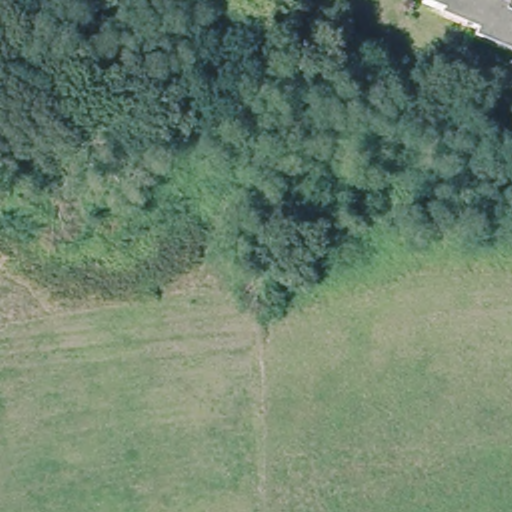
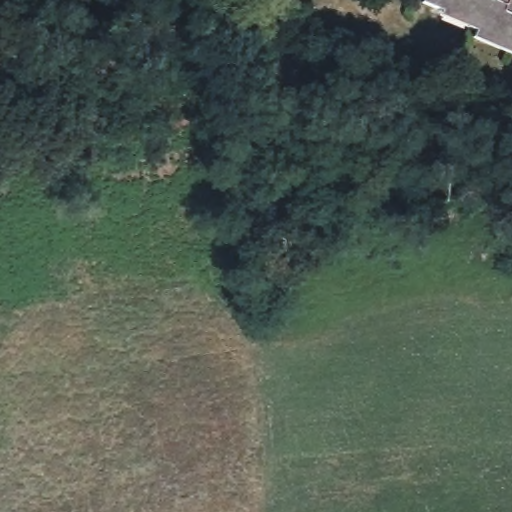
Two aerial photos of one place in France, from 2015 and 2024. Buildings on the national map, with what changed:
unchanged [(475,28),(478,21),(445,6),(442,11),(421,1),(422,0),(512,0),(512,44),(475,28)]

